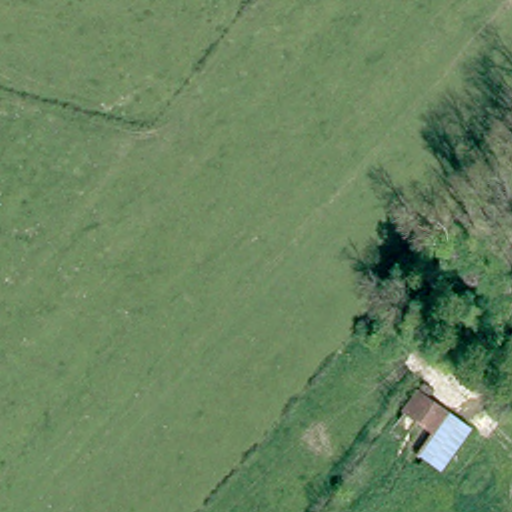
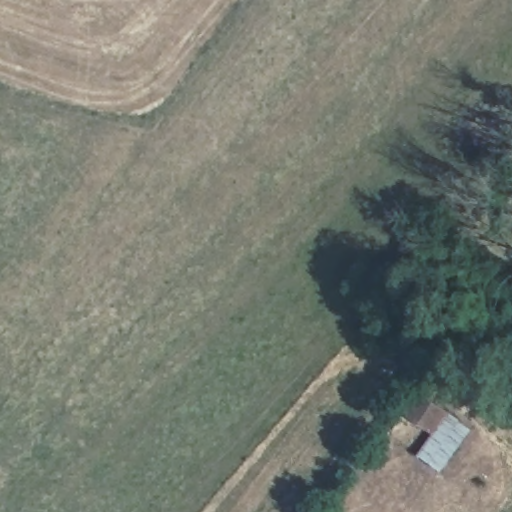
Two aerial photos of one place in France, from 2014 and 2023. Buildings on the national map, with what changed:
unchanged [(440,469),(385,435),(417,389),(472,428),(440,469)]

